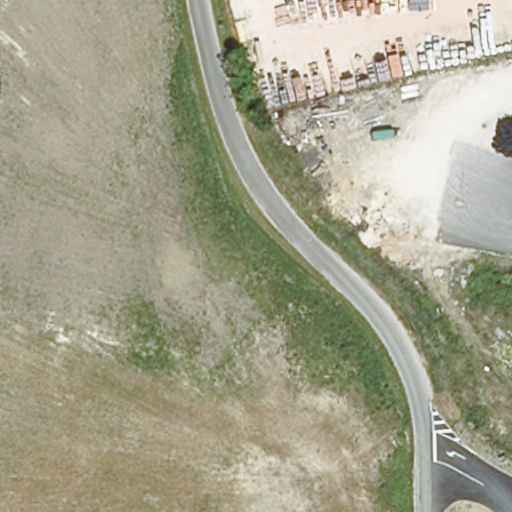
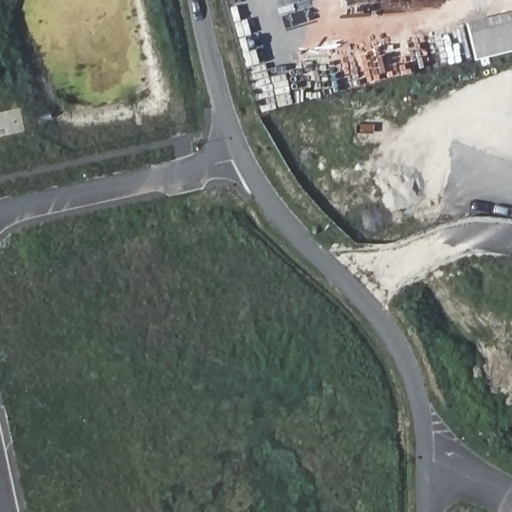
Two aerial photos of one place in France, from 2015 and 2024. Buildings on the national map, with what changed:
new [(477,60),(467,22),(512,11),(512,51),(477,60)]

